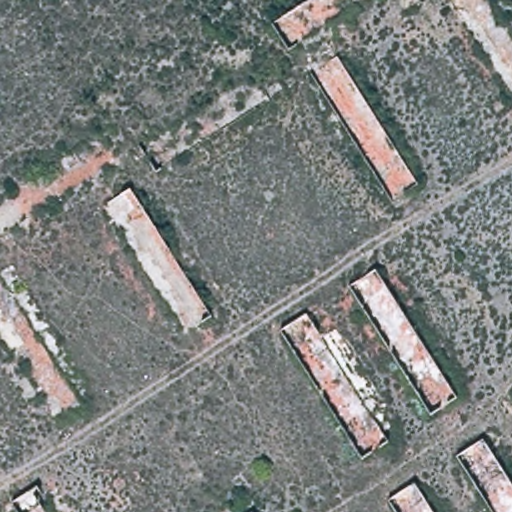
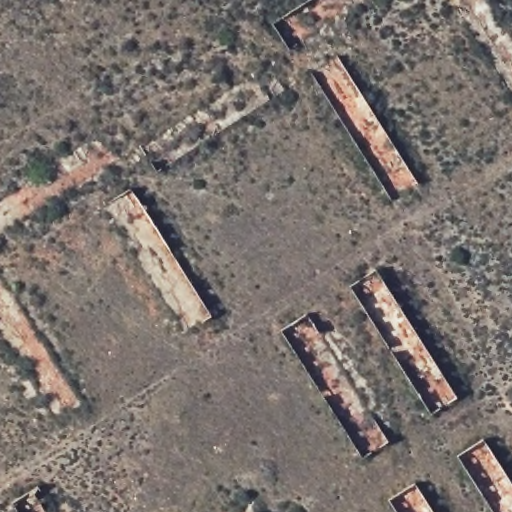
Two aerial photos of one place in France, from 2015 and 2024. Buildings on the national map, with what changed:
unchanged [(259,512),(242,512),(253,506),(259,512)]

